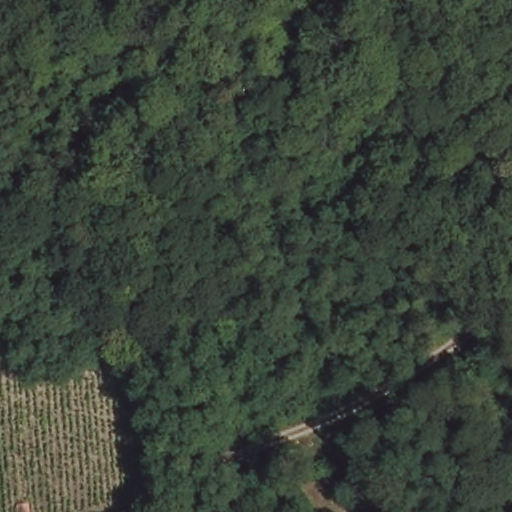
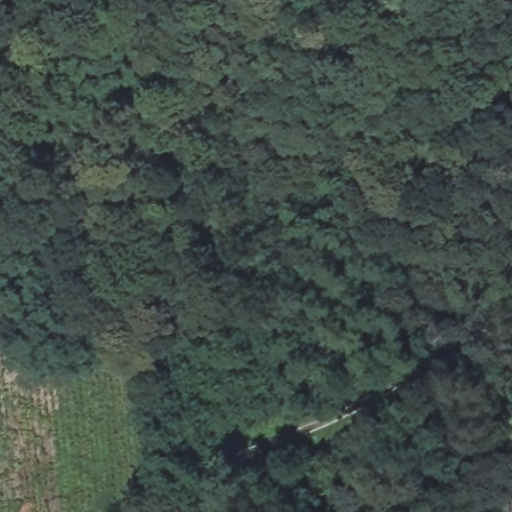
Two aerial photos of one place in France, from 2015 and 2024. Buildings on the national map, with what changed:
unchanged [(59,512),(34,512),(33,502),(49,500),(57,499),(59,512)]

